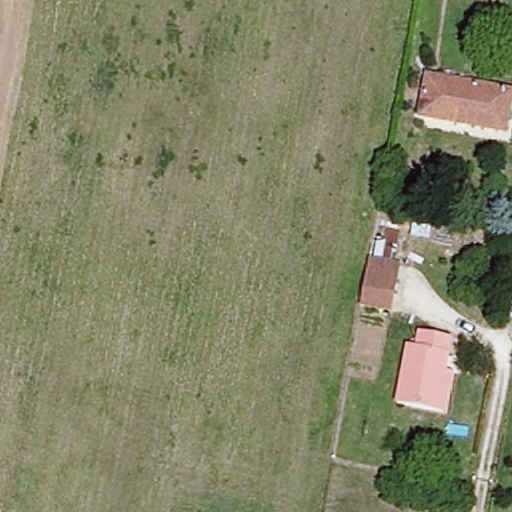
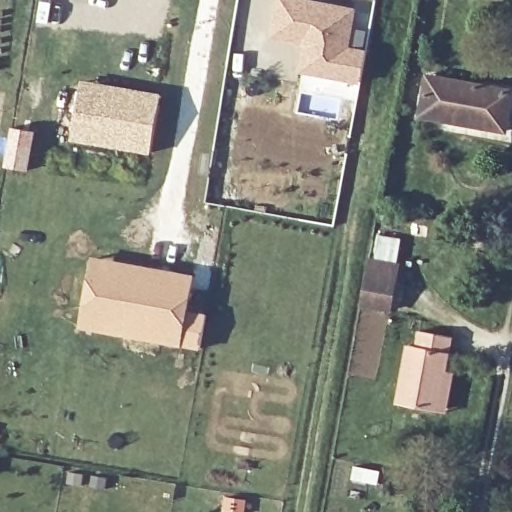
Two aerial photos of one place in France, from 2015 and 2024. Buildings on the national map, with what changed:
new [(293,0),(348,9),(342,48),(362,52),(358,80),(307,72),(298,70),(302,47),(298,42),(270,36),(272,27),(277,0),(293,0)]
unchanged [(424,117),(431,75),(512,90),(512,102),(506,132),(424,117)]
new [(80,80),(161,94),(151,155),(70,141),(80,80)]
new [(10,127),(36,132),(29,172),(3,167),(10,127)]
unchanged [(368,257),(400,263),(391,312),(360,307),(368,257)]
new [(89,258),(162,272),(187,277),(177,332),(97,318),(95,330),(76,327),(86,270),(89,258)]
new [(97,318),(177,332),(175,344),(95,330),(97,318)]
unchanged [(405,402),(416,348),(425,350),(430,332),(458,338),(442,411),(405,402)]

